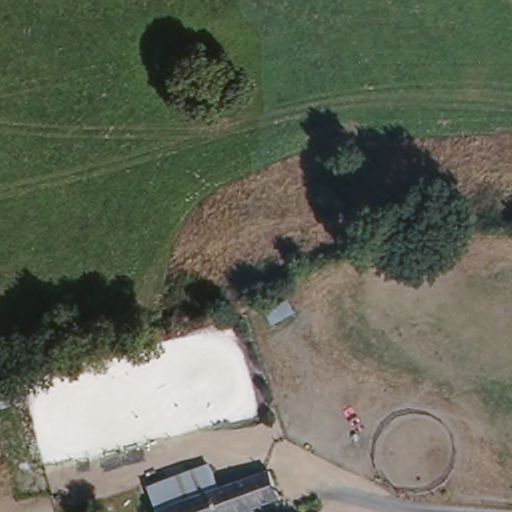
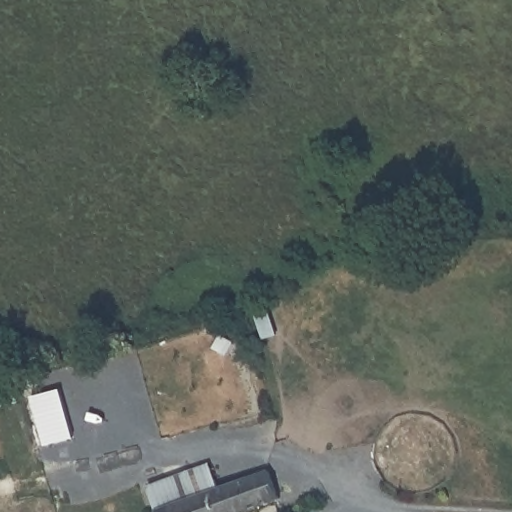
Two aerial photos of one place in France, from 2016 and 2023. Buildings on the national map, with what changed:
new [(75,440),(46,447),(34,399),(62,391),(75,440)]
unchanged [(268,466),(277,498),(230,512),(163,512),(159,498),(268,466)]

